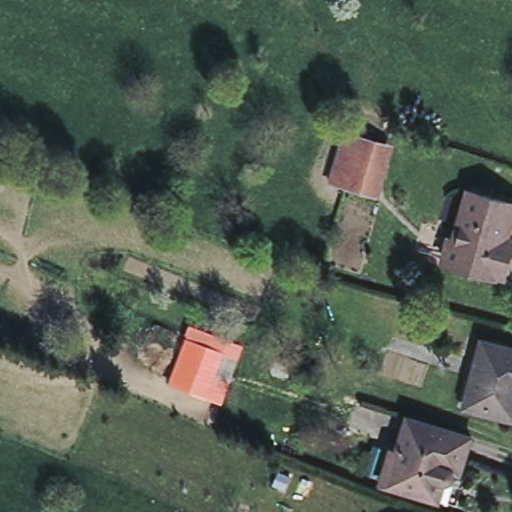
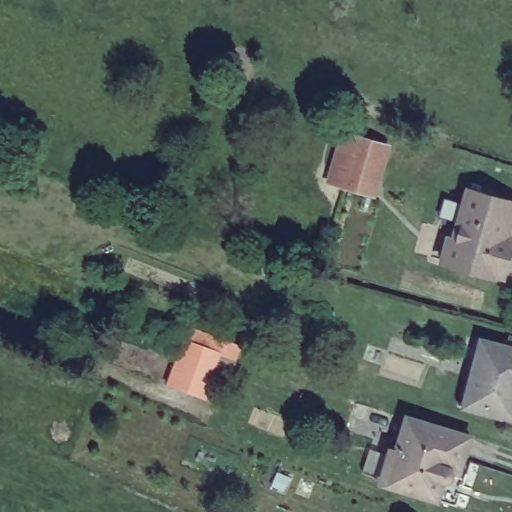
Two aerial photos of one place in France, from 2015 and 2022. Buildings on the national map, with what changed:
unchanged [(385,145),(371,194),(342,185),(356,137),(385,145)]
unchanged [(512,198),(512,211),(506,232),(512,234),(512,241),(504,271),(496,268),(494,272),(443,256),(449,235),(454,236),(469,186),(512,198)]
unchanged [(223,342),(208,382),(178,371),(194,330),(223,342)]
unchanged [(477,386),(486,346),(512,352),(512,422),(464,409),(469,384),(477,386)]
unchanged [(393,447),(399,449),(408,418),(470,437),(460,472),(454,470),(454,477),(449,481),(444,480),(438,500),(382,482),(393,447)]

